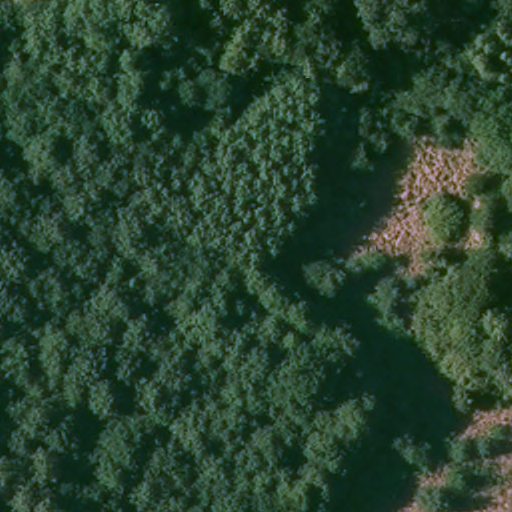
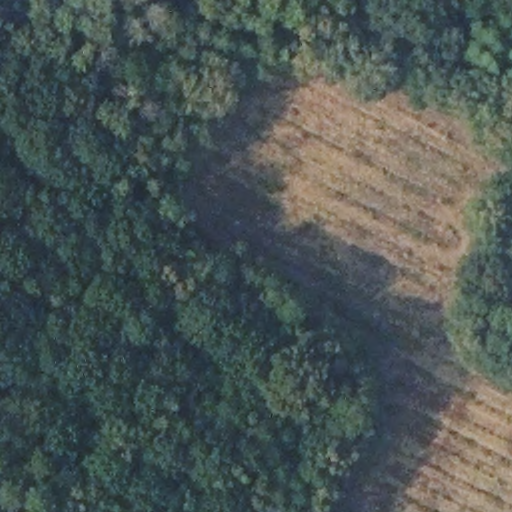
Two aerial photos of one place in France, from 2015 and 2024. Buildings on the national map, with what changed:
unchanged [(302,0),(311,0),(308,4),(302,0)]

